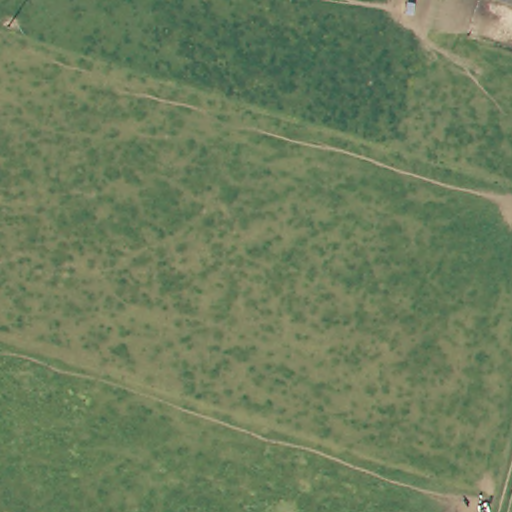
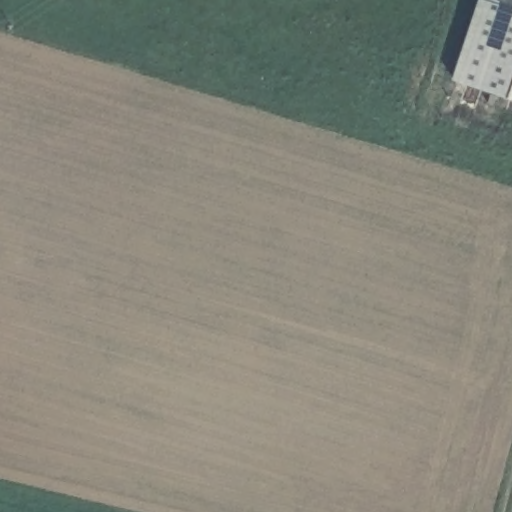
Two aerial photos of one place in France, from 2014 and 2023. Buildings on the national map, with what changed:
new [(512,100),(450,80),(476,0),(496,0),(512,6),(512,100)]
unchanged [(512,0),(512,6),(496,0),(512,0)]

